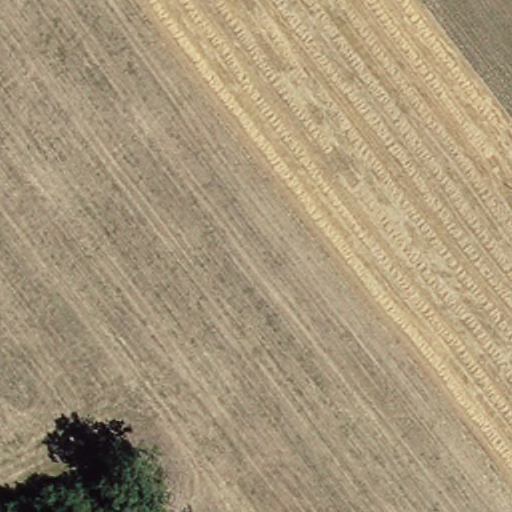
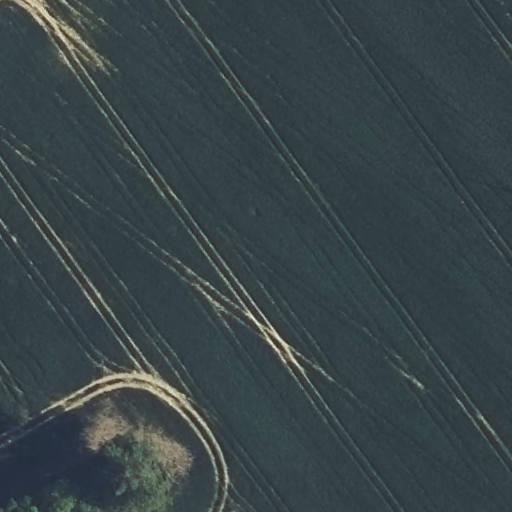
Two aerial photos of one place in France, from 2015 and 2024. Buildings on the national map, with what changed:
[]

